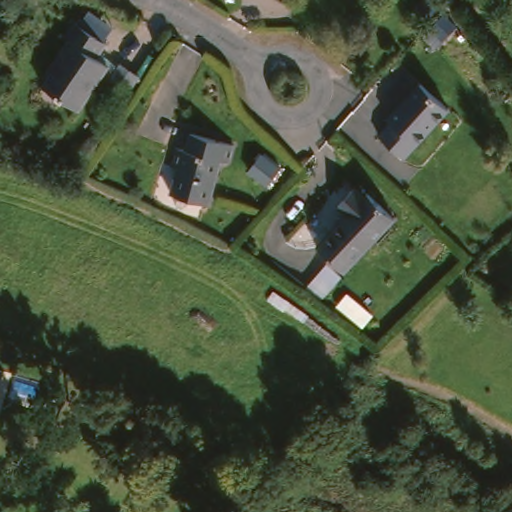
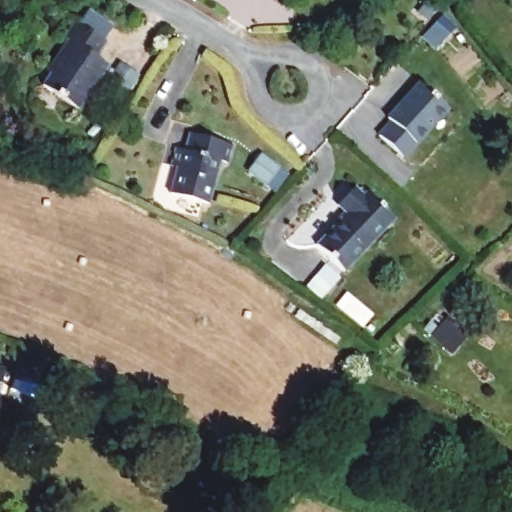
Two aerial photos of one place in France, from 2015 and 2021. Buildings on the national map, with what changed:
unchanged [(108,34),(100,48),(113,55),(85,104),(54,87),(80,41),(72,37),(82,20),(108,34)]
unchanged [(372,132),(374,131),(385,118),(381,115),(411,82),(438,107),(397,152),(395,155),(372,132)]
unchanged [(243,141),(237,160),(229,157),(216,204),(175,193),(183,164),(176,162),(181,144),(190,146),(195,128),(243,141)]
unchanged [(256,166),(268,149),(284,161),(271,177),(256,166)]
unchanged [(349,268),(321,241),(346,210),(340,202),(354,185),(363,194),(367,189),(395,214),(349,268)]

